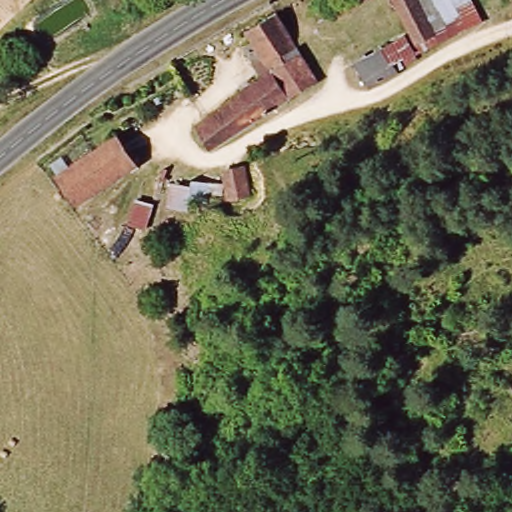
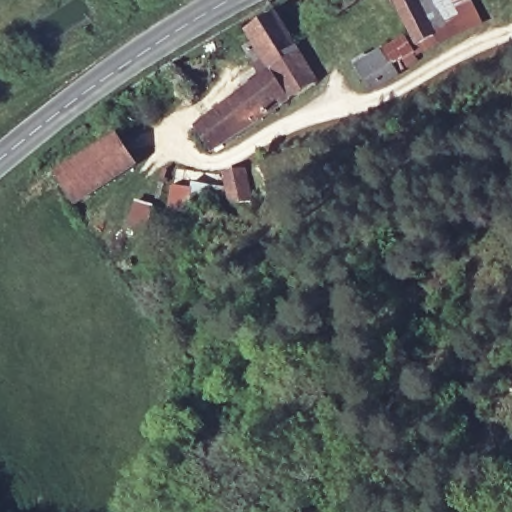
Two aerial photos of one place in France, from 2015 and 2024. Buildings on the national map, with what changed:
unchanged [(437,44),(412,55),(390,1),(393,0),(415,0),(437,44)]
unchanged [(480,27),(437,44),(415,0),(470,0),(480,27)]
unchanged [(267,67),(250,74),(242,60),(257,49),(250,37),(282,19),(317,80),(210,156),(195,130),(270,72),(267,67)]
unchanged [(387,75),(378,56),(402,45),(408,59),(387,75)]
unchanged [(202,61),(217,88),(193,100),(180,75),(202,61)]
unchanged [(57,180),(110,140),(132,168),(78,209),(57,180)]
unchanged [(222,192),(222,202),(219,217),(202,215),(201,222),(175,219),(178,195),(203,197),(205,190),(222,192)]

